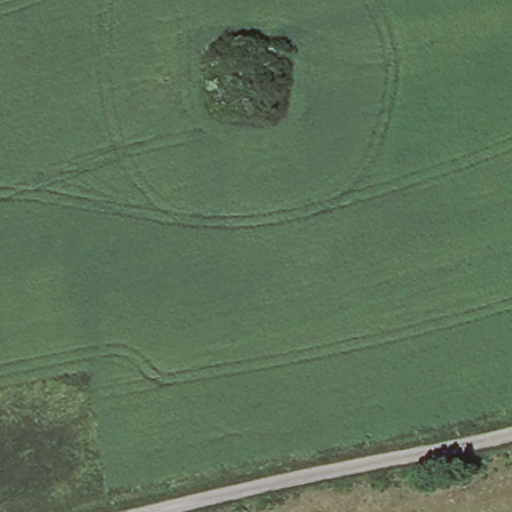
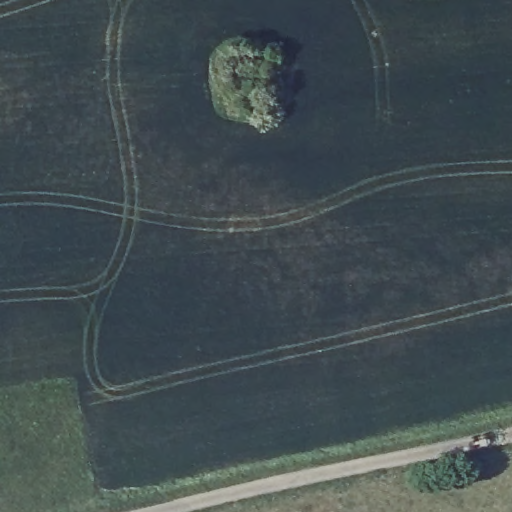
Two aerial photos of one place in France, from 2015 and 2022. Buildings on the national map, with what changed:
unchanged [(263,65),(255,86),(227,75),(235,54),(263,65)]

